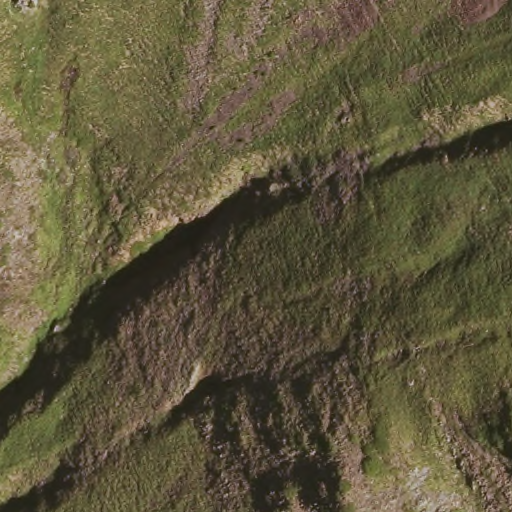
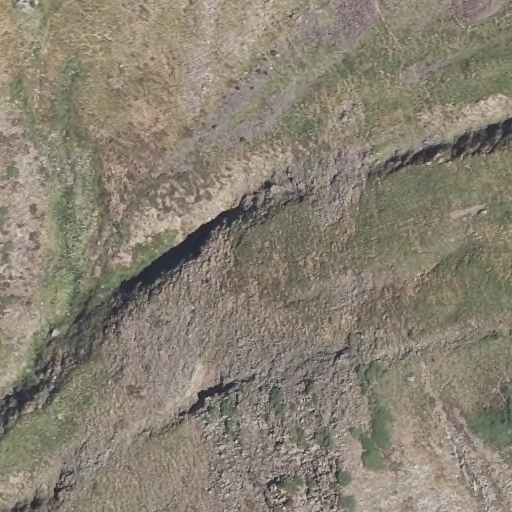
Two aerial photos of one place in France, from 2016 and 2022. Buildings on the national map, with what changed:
unchanged [(31,1),(22,10),(13,0),(31,0),(31,1)]

